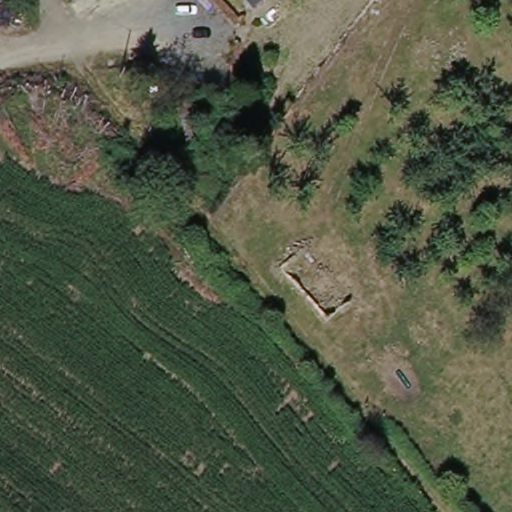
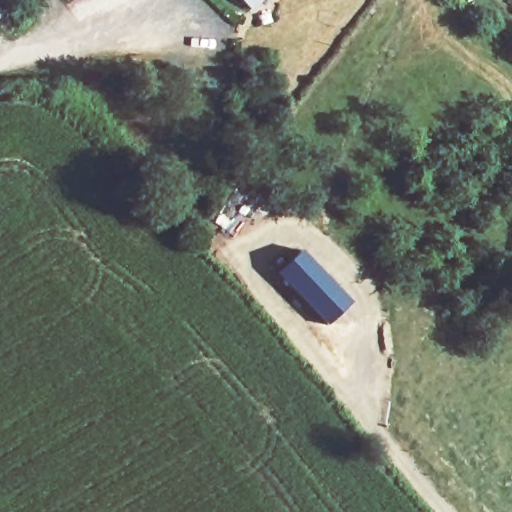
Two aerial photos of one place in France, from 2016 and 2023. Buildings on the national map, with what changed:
unchanged [(267,0),(258,10),(247,0),(267,0)]
new [(350,305),(327,327),(278,271),(299,250),(350,305)]

